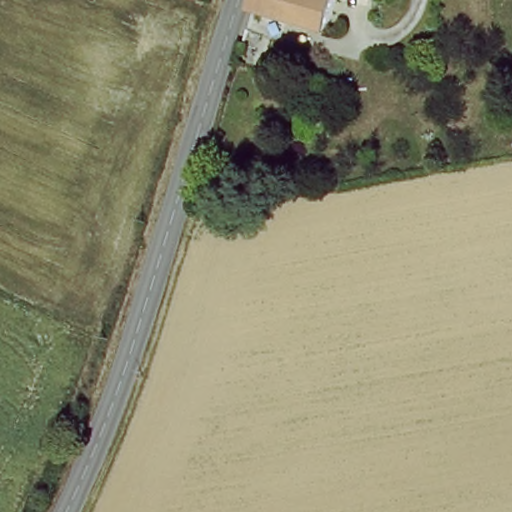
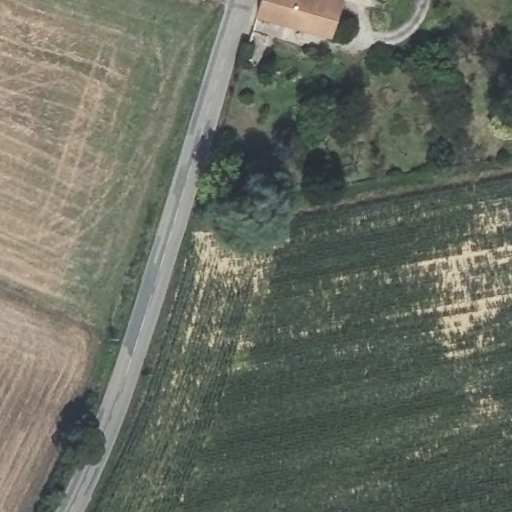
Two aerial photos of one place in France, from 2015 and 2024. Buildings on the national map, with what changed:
unchanged [(258,13),(262,0),(347,0),(335,34),(258,13)]
unchanged [(265,37),(258,57),(246,53),(252,33),(265,37)]

